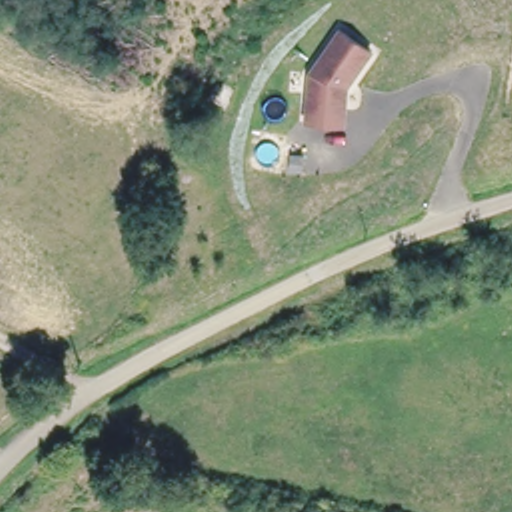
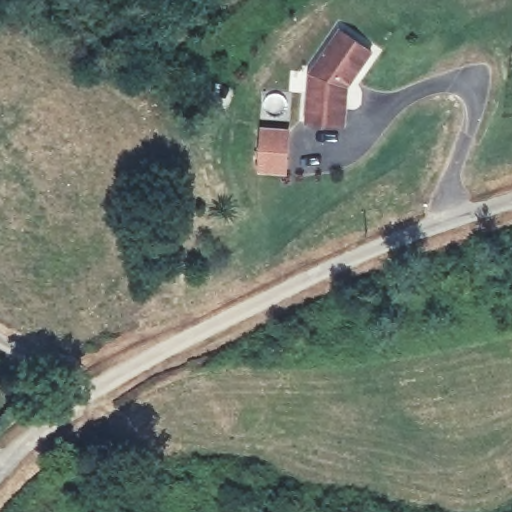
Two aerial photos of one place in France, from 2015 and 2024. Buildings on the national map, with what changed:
unchanged [(299,76),(328,30),(361,51),(337,87),(337,125),(297,125),(299,76)]
new [(257,173),(261,126),(292,128),(288,175),(257,173)]

